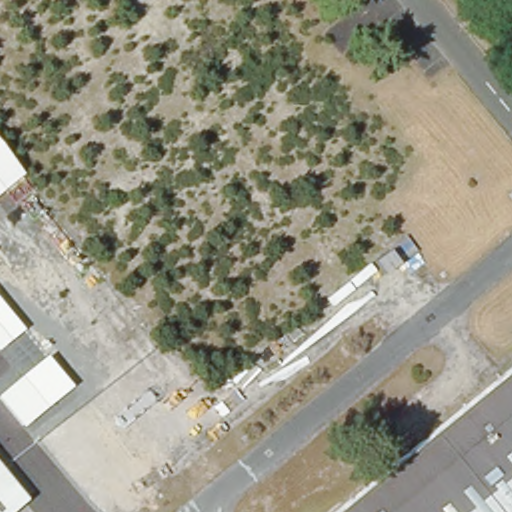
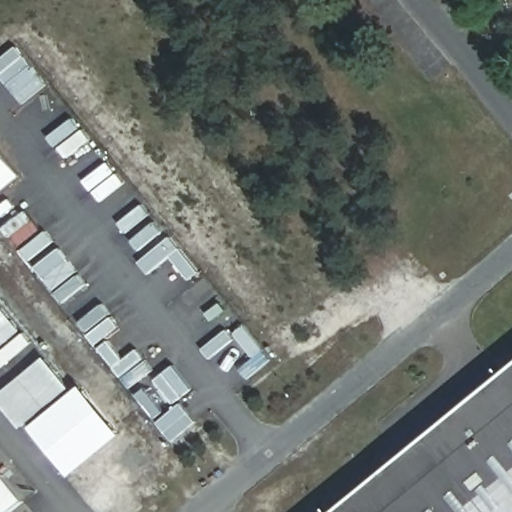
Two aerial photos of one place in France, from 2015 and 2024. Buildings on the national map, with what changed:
unchanged [(0,192),(0,147),(22,174),(0,192)]
unchanged [(0,348),(0,302),(23,330),(0,348)]
unchanged [(23,427),(0,399),(0,394),(46,356),(71,387),(23,427)]
unchanged [(512,512),(341,512),(512,377),(512,512)]
new [(31,427),(82,385),(102,408),(122,433),(71,475),(51,451),(31,427)]
unchanged [(27,501),(14,512),(0,512),(0,468),(27,501)]

